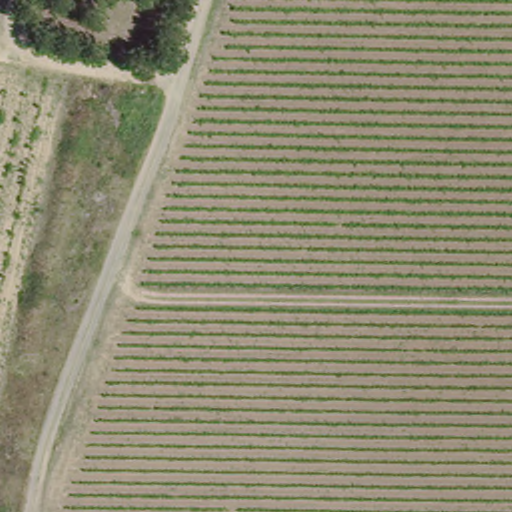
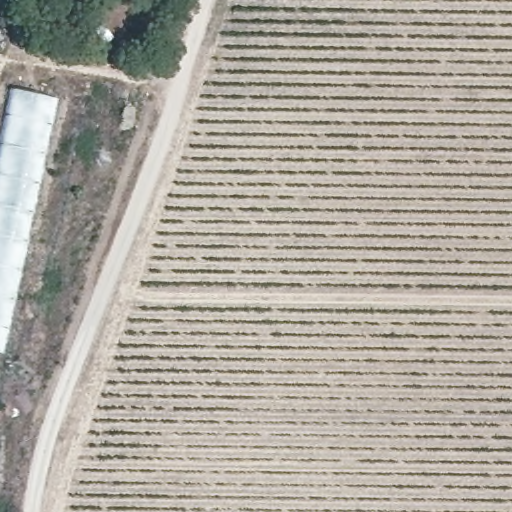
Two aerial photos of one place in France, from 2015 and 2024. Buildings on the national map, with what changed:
new [(58,97),(31,226),(17,304),(5,354),(0,353),(0,136),(10,87),(58,97)]

